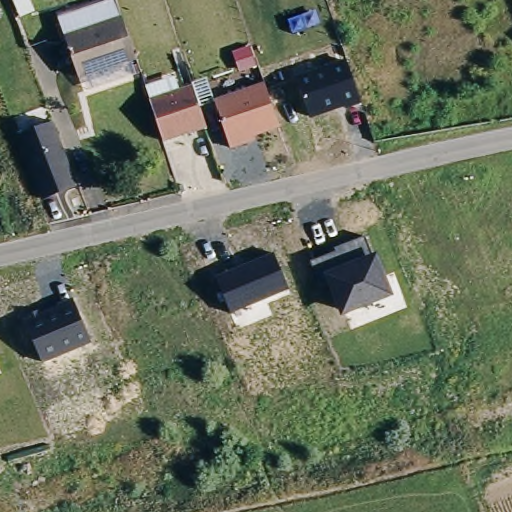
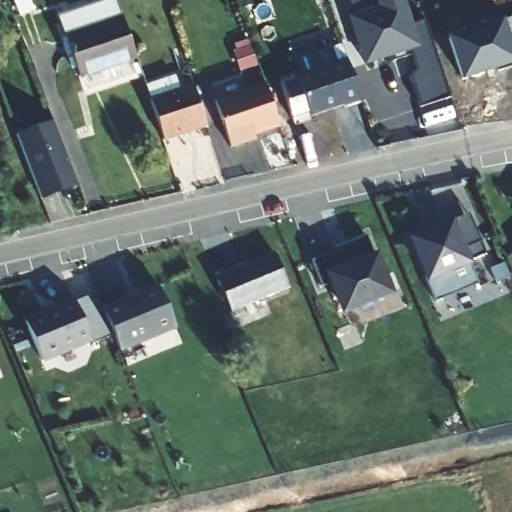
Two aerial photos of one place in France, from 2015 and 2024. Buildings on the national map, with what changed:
new [(420,110),(410,79),(412,75),(417,73),(412,57),(395,63),(392,56),(367,65),(351,20),(381,10),(378,0),(402,0),(411,26),(425,21),(451,100),(420,110)]
unchanged [(59,25),(117,5),(123,21),(124,24),(65,44),(59,25)]
new [(504,20),(512,46),(512,65),(500,69),(499,65),(460,79),(447,38),(504,20)]
unchanged [(124,24),(137,63),(80,82),(65,44),(124,24)]
unchanged [(360,101),(310,118),(297,76),(346,59),(360,101)]
unchanged [(256,140),(231,148),(214,99),(264,82),(279,126),(254,135),(256,140)]
unchanged [(172,91),(194,85),(195,90),(207,125),(185,132),(165,140),(151,99),(172,91)]
unchanged [(75,187),(40,200),(18,134),(54,122),(75,187)]
new [(431,226),(469,211),(481,239),(487,252),(429,276),(412,237),(432,229),(431,226)]
unchanged [(372,255),(377,252),(395,295),(341,316),(329,280),(319,283),(311,261),(335,251),(334,248),(365,236),(372,255)]
unchanged [(289,288),(230,312),(215,277),(272,253),(289,288)]
new [(120,353),(102,306),(157,284),(176,329),(120,353)]
unchanged [(92,344),(43,363),(24,318),(74,298),(92,344)]

